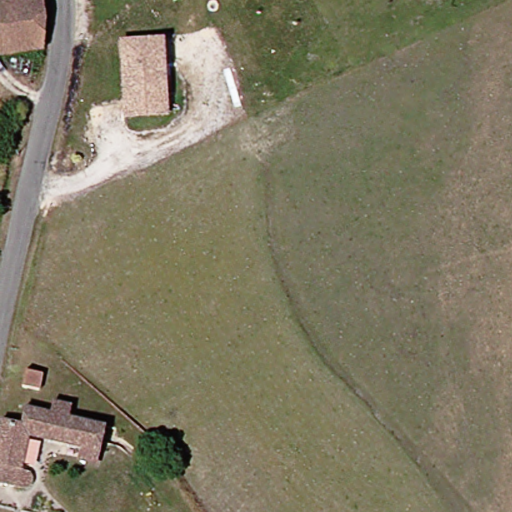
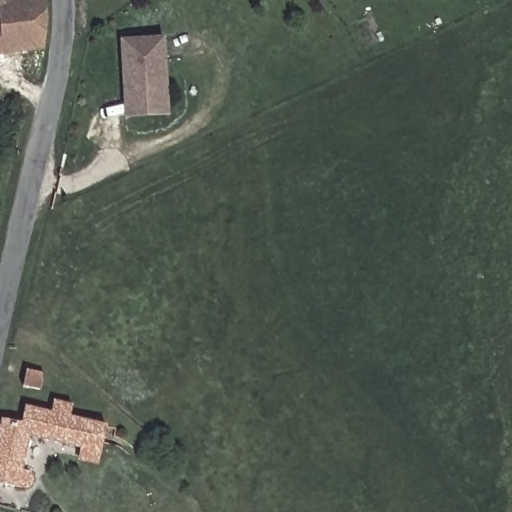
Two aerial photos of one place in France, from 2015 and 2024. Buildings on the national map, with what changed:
unchanged [(0,0),(47,0),(47,53),(0,57),(0,0)]
unchanged [(128,118),(127,103),(124,42),(165,40),(167,101),(168,116),(128,118)]
unchanged [(82,460),(82,450),(27,440),(22,477),(29,477),(32,481),(32,490),(23,494),(0,490),(0,425),(18,429),(22,413),(42,415),(50,416),(50,405),(74,408),(72,421),(104,424),(98,452),(99,463),(82,460)]

